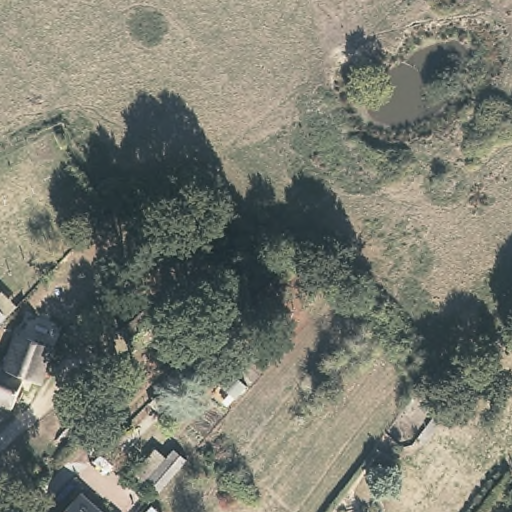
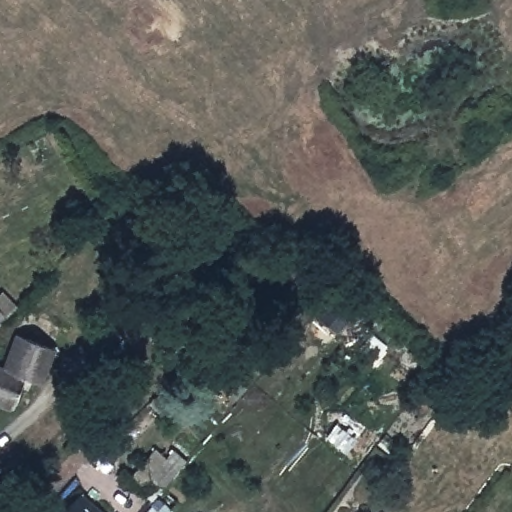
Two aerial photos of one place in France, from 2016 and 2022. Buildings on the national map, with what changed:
unchanged [(116,331),(148,304),(157,315),(164,323),(132,350),(123,340),(116,331)]
unchanged [(0,318),(0,313),(2,315),(0,318)]
unchanged [(10,408),(0,404),(0,368),(1,368),(7,355),(14,335),(28,340),(50,349),(43,370),(38,383),(22,377),(10,408)]
unchanged [(186,461),(160,490),(148,480),(174,451),(186,461)]
unchanged [(100,512),(62,512),(78,493),(100,512)]
unchanged [(172,506),(168,512),(149,512),(148,511),(161,496),(172,506)]

